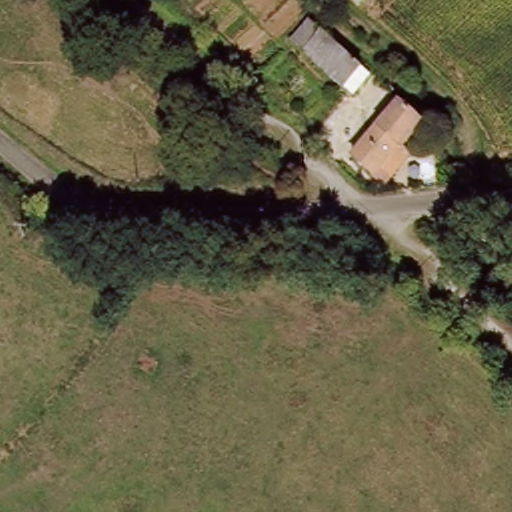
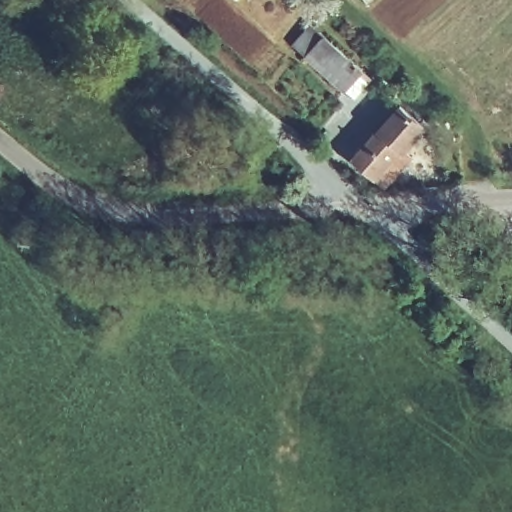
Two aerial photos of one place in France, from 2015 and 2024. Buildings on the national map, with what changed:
unchanged [(362,0),(371,0),(366,4),(362,0)]
unchanged [(293,46),(304,29),(359,65),(371,74),(354,94),(341,84),(293,46)]
unchanged [(356,158),(404,109),(424,129),(401,152),(409,161),(384,187),(375,178),(356,158)]

